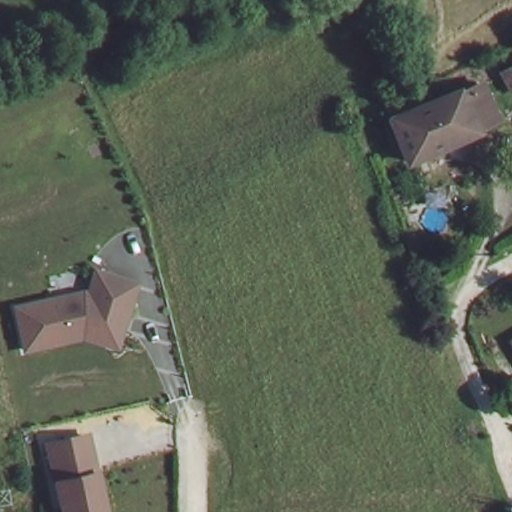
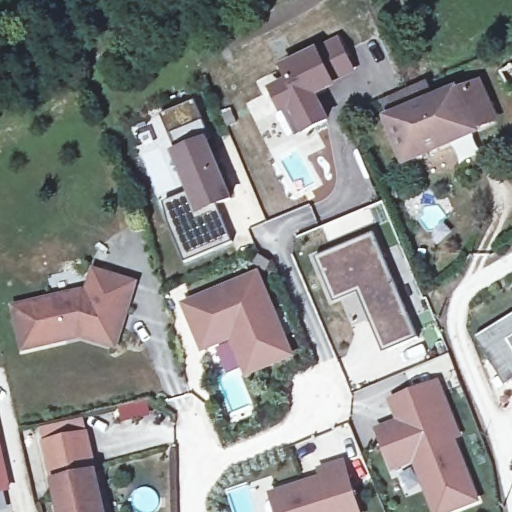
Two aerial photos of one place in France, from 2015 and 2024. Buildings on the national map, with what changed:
new [(335,88),(317,97),(328,121),(300,136),(287,111),(281,115),(267,89),(285,79),(279,67),(318,48),(337,39),(355,73),(335,88)]
unchanged [(507,88),(497,71),(512,63),(512,86),(507,88)]
unchanged [(478,86),(491,121),(471,129),(474,136),(402,164),(383,123),(376,104),(409,91),(417,110),(457,94),(478,86)]
new [(212,140),(207,141),(233,200),(217,206),(232,242),(184,262),(165,205),(187,195),(170,151),(175,148),(160,116),(195,101),(212,140)]
new [(358,290),(330,302),(313,259),(373,236),(418,341),(382,356),(358,290)]
unchanged [(117,348),(84,336),(15,348),(5,301),(85,285),(89,265),(140,281),(117,348)]
new [(197,354),(178,302),(259,272),(294,358),(244,377),(230,341),(197,354)]
unchanged [(509,341),(512,339),(512,346),(509,341)]
new [(390,475),(372,429),(395,421),(388,402),(439,382),(461,442),(457,445),(479,504),(458,512),(429,512),(412,467),(390,475)]
unchanged [(40,437),(90,427),(108,512),(59,512),(40,437)]
new [(0,494),(0,444),(11,492),(0,494)]
new [(317,480),(313,470),(344,461),(361,512),(273,512),(267,495),(317,480)]

